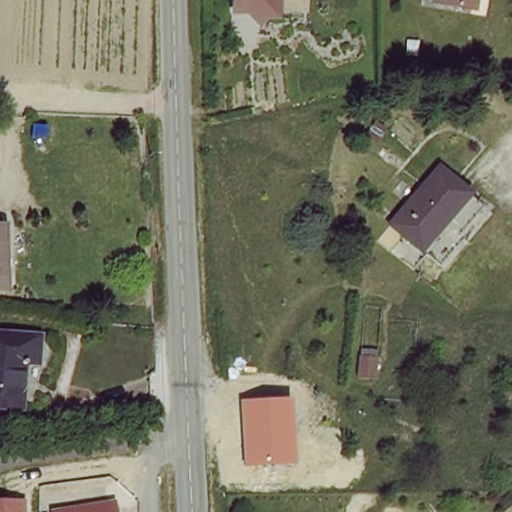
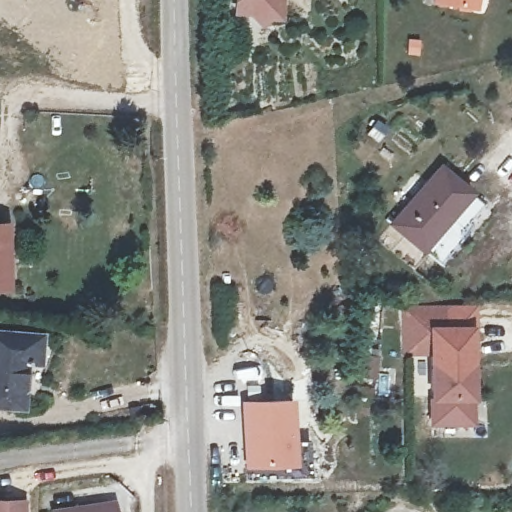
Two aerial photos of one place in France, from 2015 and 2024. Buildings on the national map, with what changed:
unchanged [(275,0),(275,13),(264,13),(259,20),(246,8),(233,9),(232,0),(275,0)]
unchanged [(476,13),(438,6),(439,0),(482,0),(480,14),(476,13)]
unchanged [(371,147),(363,141),(371,128),(381,135),(371,147)]
unchanged [(407,222),(391,209),(439,152),(488,193),(464,221),(469,226),(445,253),(429,241),(418,255),(396,235),(407,222)]
unchanged [(0,224),(11,224),(13,288),(0,289),(0,224)]
new [(474,324),(475,425),(430,425),(429,324),(474,324)]
unchanged [(16,410),(0,408),(0,335),(39,342),(35,369),(25,368),(16,410)]
unchanged [(351,390),(354,366),(373,368),(372,391),(351,390)]
unchanged [(295,464),(243,467),(240,402),(291,399),(295,464)]
unchanged [(0,512),(0,500),(25,500),(25,512),(0,512)]
unchanged [(115,500),(117,512),(50,512),(50,511),(115,500)]

